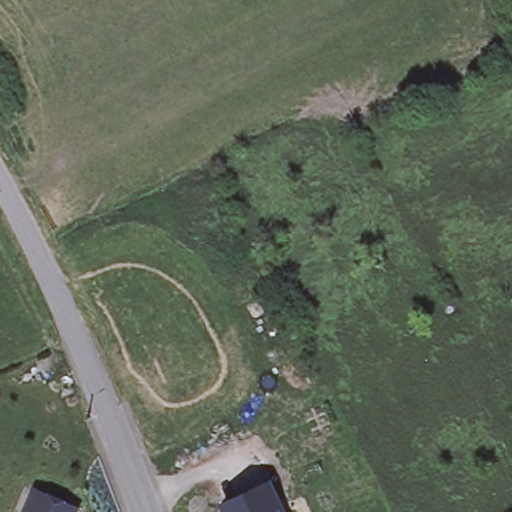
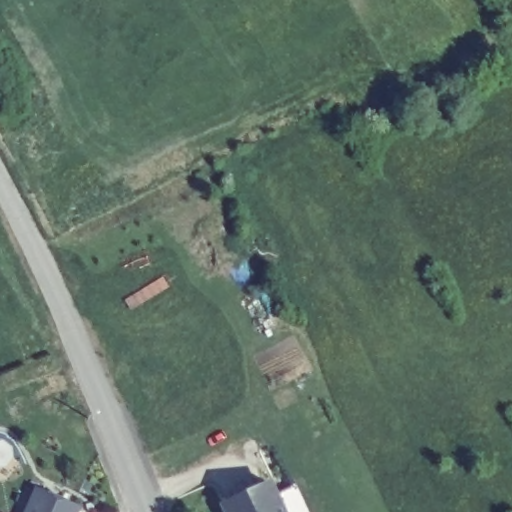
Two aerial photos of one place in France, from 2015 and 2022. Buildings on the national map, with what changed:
unchanged [(270,476),(287,512),(225,512),(221,499),(270,476)]
unchanged [(81,512),(34,512),(42,493),(82,510),(81,512)]

